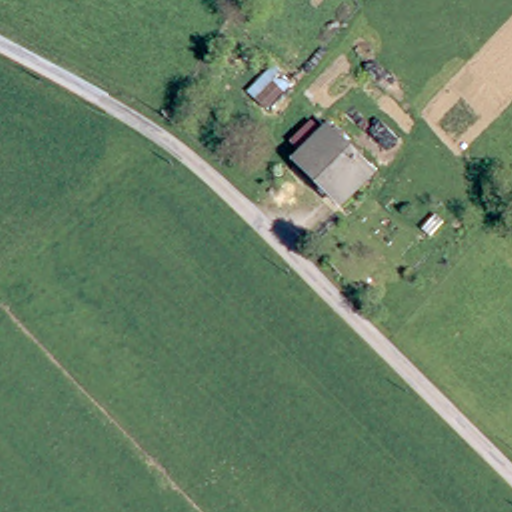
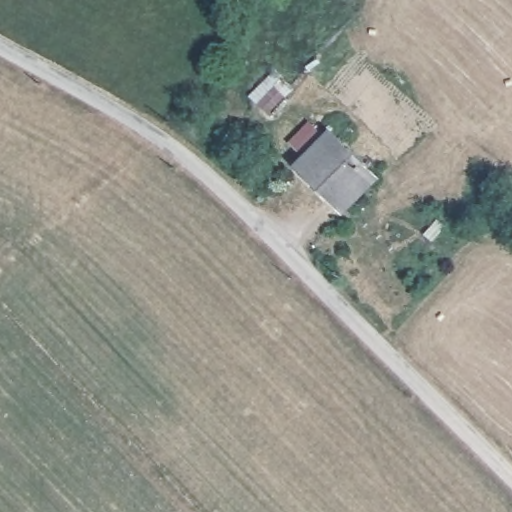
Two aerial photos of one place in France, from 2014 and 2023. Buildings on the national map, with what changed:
unchanged [(305,166),(338,132),(379,176),(347,209),(305,166)]

